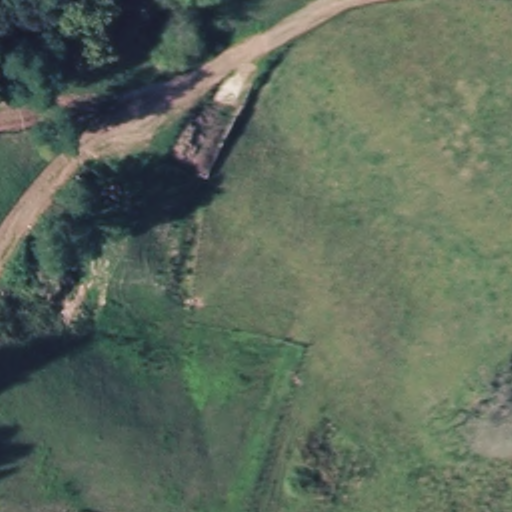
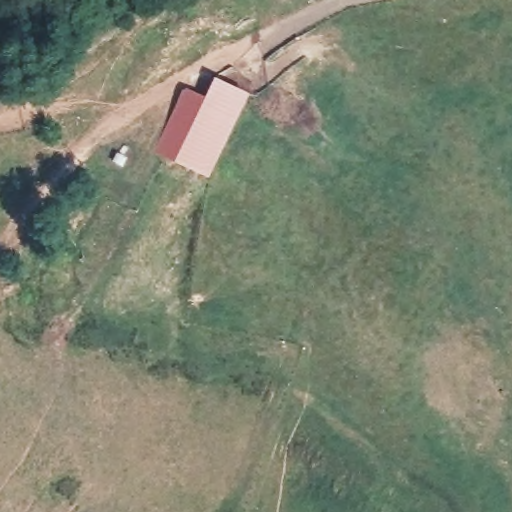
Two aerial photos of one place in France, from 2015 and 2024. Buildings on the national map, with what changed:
new [(206,98),(214,79),(249,95),(209,177),(152,152),(182,89),(206,98)]

